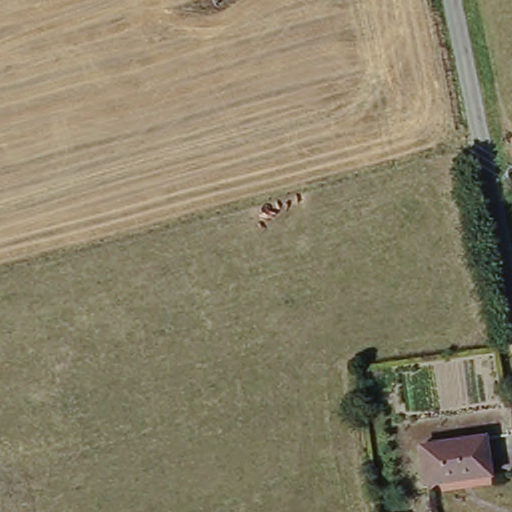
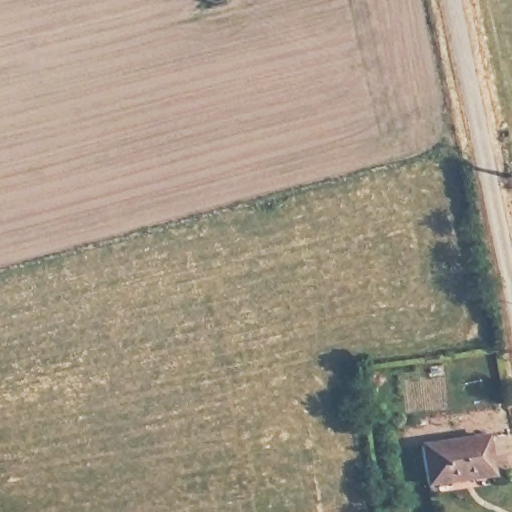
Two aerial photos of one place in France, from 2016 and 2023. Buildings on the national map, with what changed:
unchanged [(489,470),(425,480),(419,442),(483,431),(489,470)]

